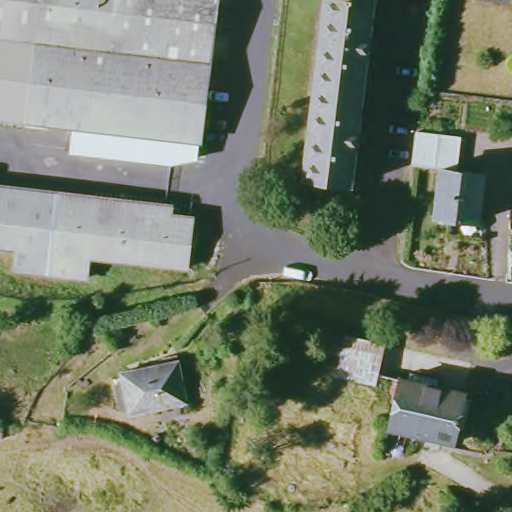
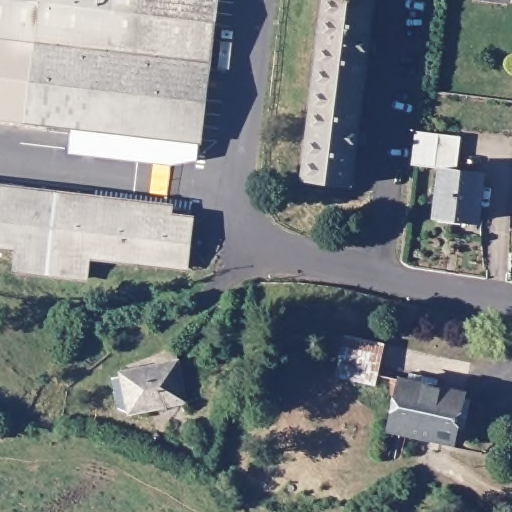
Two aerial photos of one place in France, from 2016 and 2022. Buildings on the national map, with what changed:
unchanged [(18,121),(20,111),(9,110),(11,96),(21,98),(23,85),(0,81),(0,0),(214,0),(191,148),(18,121)]
unchanged [(370,0),(343,192),(299,186),(323,0),(370,0)]
unchanged [(449,174),(477,177),(471,225),(430,219),(437,172),(409,168),(413,135),(454,141),(449,174)]
unchanged [(151,275),(56,262),(51,283),(18,280),(21,255),(0,252),(0,193),(96,208),(95,217),(158,226),(151,275)]
unchanged [(331,361),(335,341),(343,342),(344,340),(381,347),(375,377),(336,369),(338,362),(331,361)]
unchanged [(174,363),(181,403),(125,413),(118,372),(174,363)]
unchanged [(404,374),(433,381),(431,388),(459,395),(448,443),(386,430),(397,381),(402,382),(404,374)]

